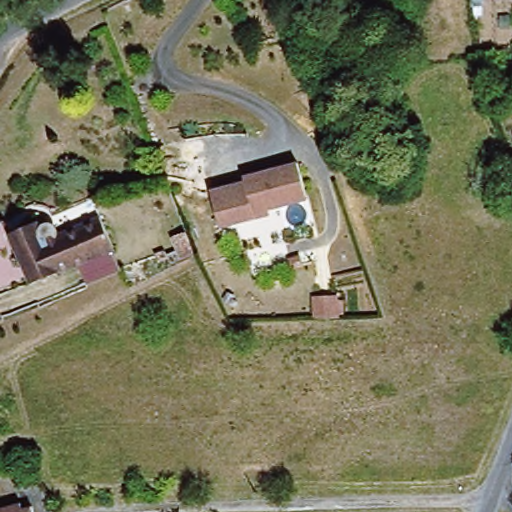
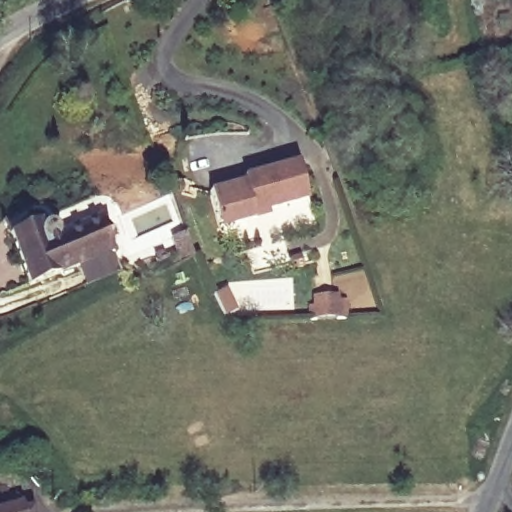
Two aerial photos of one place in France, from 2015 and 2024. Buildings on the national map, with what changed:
unchanged [(215,214),(209,191),(243,182),(242,177),(297,163),(306,201),(252,215),(253,220),(233,225),(219,228),(215,214)]
unchanged [(120,246),(34,281),(13,231),(43,219),(45,224),(52,221),(57,222),(60,226),(62,231),(105,213),(120,246)]
unchanged [(312,301),(335,301),(335,318),(312,318),(312,301)]
unchanged [(39,512),(0,512),(0,506),(25,499),(27,505),(37,503),(39,512)]

